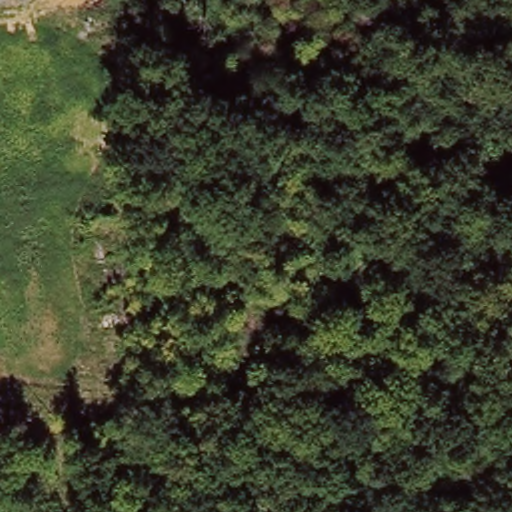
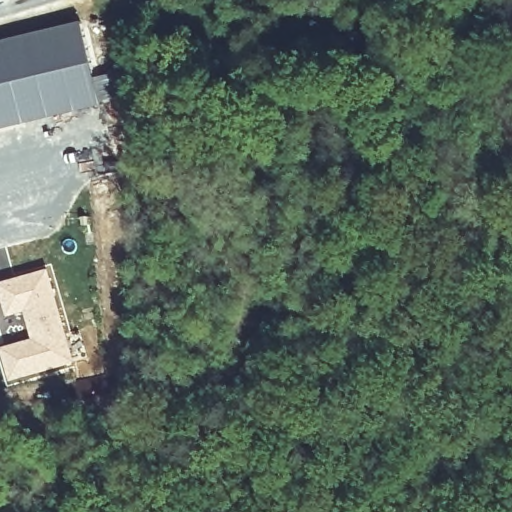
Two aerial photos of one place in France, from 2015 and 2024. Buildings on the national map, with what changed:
new [(99,105),(0,129),(0,43),(79,25),(99,105)]
new [(75,363),(6,384),(0,363),(0,345),(29,336),(22,312),(5,317),(0,302),(0,280),(49,265),(75,363)]
new [(85,357),(77,328),(94,323),(105,372),(78,378),(74,361),(85,357)]

